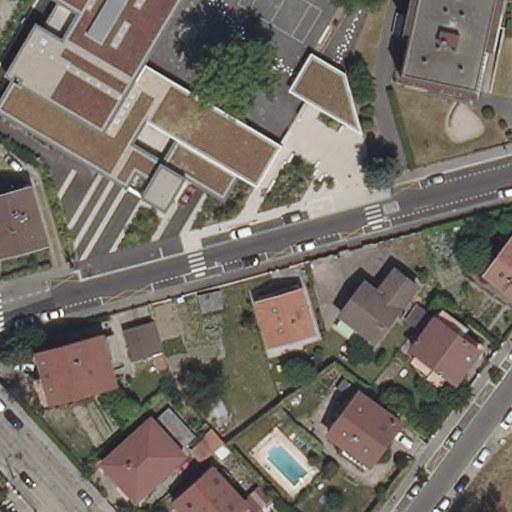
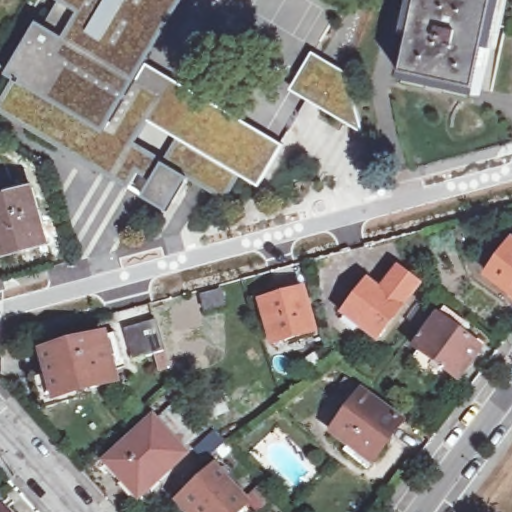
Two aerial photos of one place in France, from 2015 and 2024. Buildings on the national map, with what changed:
unchanged [(149,65),(118,47),(107,65),(35,25),(50,0),(184,0),(149,65)]
unchanged [(482,88),(407,70),(422,0),(501,0),(482,88)]
unchanged [(283,143),(259,185),(237,172),(224,196),(187,175),(166,210),(142,196),(153,179),(137,171),(128,186),(0,108),(0,106),(17,83),(5,77),(35,25),(107,65),(118,47),(149,65),(151,61),(283,143)]
unchanged [(290,91),(311,52),(347,74),(362,135),(290,91)]
unchanged [(0,240),(0,196),(33,187),(48,242),(4,255),(0,240)]
unchanged [(512,291),(488,273),(512,241),(512,291)]
unchanged [(383,338),(349,312),(373,281),(386,290),(403,268),(424,283),(383,338)]
unchanged [(222,290),(228,307),(205,314),(200,296),(222,290)]
unchanged [(302,290),(313,331),(274,343),(262,302),(302,290)]
unchanged [(435,312),(443,318),(450,309),(475,328),(470,336),(487,349),(482,355),(478,359),(472,367),(466,376),(463,380),(421,350),(434,332),(425,326),(435,312)]
unchanged [(165,350),(168,359),(137,367),(125,330),(157,321),(165,350)]
unchanged [(51,406),(42,373),(55,370),(48,348),(109,331),(122,376),(98,383),(101,393),(51,406)]
unchanged [(361,393),(400,422),(372,461),(332,432),(361,393)]
unchanged [(132,497),(102,462),(148,421),(150,422),(166,407),(191,435),(175,450),(180,454),(132,497)]
unchanged [(187,512),(178,502),(215,467),(218,471),(223,466),(233,476),(228,482),(248,503),(240,512),(187,512)]
unchanged [(2,512),(0,512),(0,510),(2,512)]

